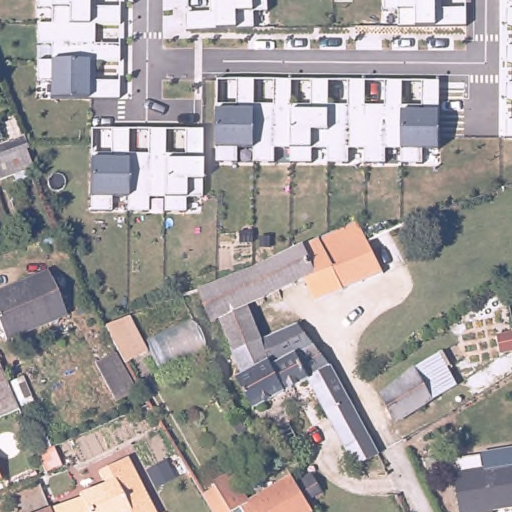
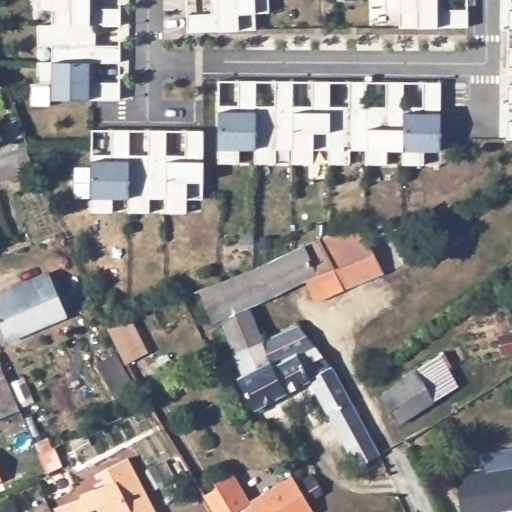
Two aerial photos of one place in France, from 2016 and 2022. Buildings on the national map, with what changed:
unchanged [(119,8),(119,27),(94,27),(93,45),(119,45),(119,65),(94,66),(94,83),(119,83),(120,100),(50,99),(51,84),(36,85),(36,64),(50,64),(50,46),(36,46),(36,24),(50,23),(50,9),(37,9),(37,0),(94,0),(94,8),(119,8)]
unchanged [(208,11),(208,0),(269,0),(269,13),(255,13),(255,32),(187,31),(186,12),(208,11)]
unchanged [(435,11),(435,28),(399,29),(399,12),(385,12),(384,0),(467,0),(467,10),(435,11)]
unchanged [(508,11),(512,11),(512,30),(508,30),(508,11)]
unchanged [(508,47),(512,47),(512,66),(508,66),(508,47)]
unchanged [(217,106),(237,106),(238,83),(255,83),(255,106),(275,107),(275,83),(290,84),(290,106),(313,106),(313,84),(329,84),(329,106),(348,106),(348,85),(366,85),(365,106),(386,107),(385,84),(402,85),(402,107),(422,107),(422,85),(439,85),(437,152),(422,151),(422,168),(402,168),(402,151),(385,150),(384,166),(365,166),(365,150),(346,150),(346,166),(328,166),(327,150),(311,149),(311,165),(292,164),(292,150),(275,150),(275,165),(255,164),(255,150),(237,150),(237,164),(216,164),(217,106)]
unchanged [(507,83),(512,83),(512,105),(507,104),(507,83)]
unchanged [(512,121),(512,138),(506,138),(506,120),(512,121)]
unchanged [(184,200),(184,212),(163,212),(163,200),(148,199),(148,214),(126,212),(126,197),(112,197),(112,210),(90,210),(91,154),(110,154),(111,129),(129,129),(128,154),(148,154),(148,130),(166,130),(165,154),(184,154),(185,131),(203,130),(203,200),(184,200)]
unchanged [(22,145),(29,164),(0,175),(0,153),(22,145)]
unchanged [(382,273),(348,289),(344,282),(323,237),(357,220),(382,273)]
unchanged [(224,319),(217,323),(202,289),(264,265),(307,245),(322,238),(323,237),(344,282),(348,289),(320,303),(310,281),(255,307),(268,339),(238,352),(226,324),(224,319)]
unchanged [(48,273),(66,317),(5,342),(0,330),(0,293),(48,273)]
unchanged [(124,318),(143,351),(122,363),(103,332),(101,326),(124,318)]
unchanged [(268,339),(301,325),(337,370),(354,402),(331,413),(313,380),(260,409),(242,377),(247,374),(238,352),(268,339)]
unchanged [(115,403),(112,397),(94,365),(114,353),(132,387),(135,392),(115,403)]
unchanged [(464,391),(401,426),(381,389),(444,355),(464,391)]
unchanged [(18,412),(0,419),(0,371),(18,412)]
unchanged [(381,456),(358,468),(331,413),(354,402),(381,456)]
unchanged [(51,447),(61,469),(47,475),(38,453),(51,447)]
unchanged [(478,457),(512,452),(512,511),(508,512),(458,512),(452,477),(481,472),(478,457)]
unchanged [(84,494),(110,482),(104,470),(111,468),(132,458),(158,512),(56,512),(55,509),(85,496),(84,494)]
unchanged [(215,491),(213,485),(235,472),(253,503),(294,478),(314,512),(209,512),(202,499),(215,491)]
unchanged [(55,509),(56,512),(41,512),(54,507),(55,509)]

